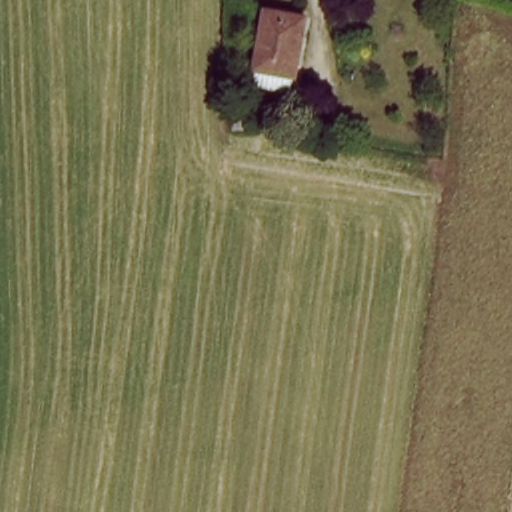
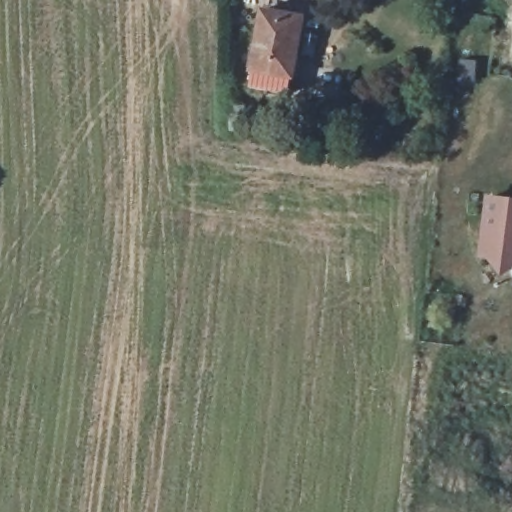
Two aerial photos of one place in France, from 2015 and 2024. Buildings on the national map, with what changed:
unchanged [(249,89),(252,70),(262,10),(302,16),(294,76),(292,94),(249,89)]
unchanged [(246,107),(245,133),(229,132),(230,106),(246,107)]
new [(502,277),(487,260),(477,259),(486,196),(512,200),(512,271),(502,277)]

